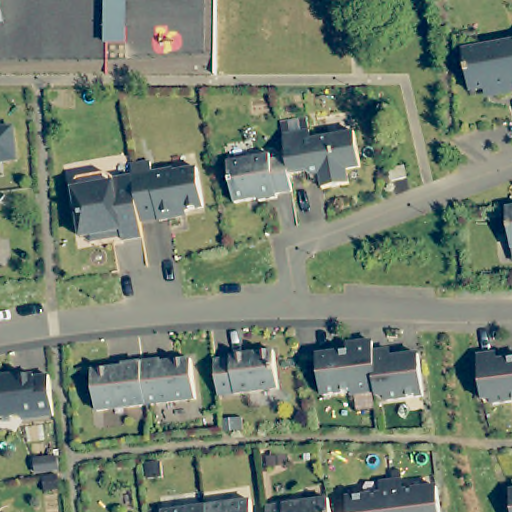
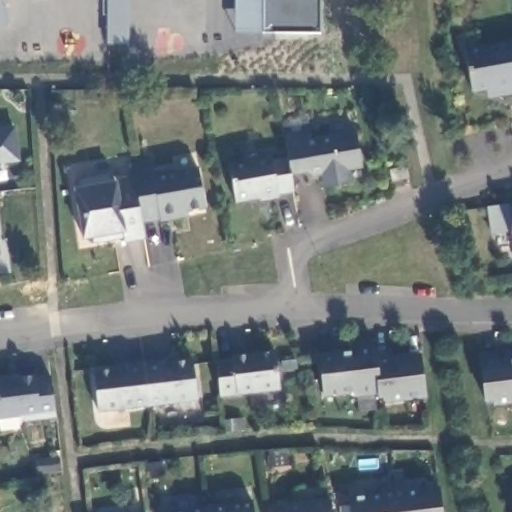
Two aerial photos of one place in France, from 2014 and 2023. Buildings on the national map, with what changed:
unchanged [(105,45),(105,0),(128,0),(127,45),(105,45)]
new [(234,32),(234,0),(319,0),(318,33),(234,32)]
unchanged [(0,25),(0,2),(5,24),(0,25)]
new [(17,31),(16,61),(0,61),(0,30),(17,31)]
unchanged [(495,86),(471,90),(463,49),(512,40),(512,91),(496,94),(495,86)]
unchanged [(19,124),(24,162),(0,161),(0,125),(19,124)]
unchanged [(314,131),(315,140),(359,132),(365,167),(351,170),(354,185),(328,190),(325,175),(316,176),(310,172),(294,175),(294,172),(292,161),(291,157),(289,145),(287,135),(314,131)]
unchanged [(275,155),(275,160),(291,157),(292,161),(294,172),(294,175),(297,192),(282,195),(282,199),(264,202),(264,199),(239,204),(232,162),(275,155)]
unchanged [(131,163),(150,160),(152,172),(174,167),(174,170),(198,166),(205,206),(187,209),(188,214),(160,219),(159,216),(141,219),(139,207),(138,203),(134,175),(133,175),(131,163)]
unchanged [(408,177),(391,181),(388,170),(406,166),(408,177)]
unchanged [(124,239),(122,229),(106,232),(102,237),(92,239),(86,235),(83,235),(74,182),(79,175),(107,170),(114,175),(115,177),(133,175),(134,175),(138,203),(139,207),(141,219),(143,230),(144,235),(124,239)]
unchanged [(512,209),(512,241),(508,209),(512,209)]
unchanged [(3,252),(0,252),(0,223),(3,252)]
unchanged [(353,347),(352,341),(377,337),(378,348),(382,388),(358,392),(357,388),(327,392),(323,351),(353,347)]
unchanged [(378,348),(394,346),(395,353),(423,351),(428,392),(391,397),(391,392),(382,393),(382,388),(378,348)]
unchanged [(283,385),(224,392),(220,357),(237,355),(237,352),(278,347),(283,385)]
unchanged [(501,360),(512,358),(512,401),(498,402),(498,397),(489,400),(483,354),(500,352),(501,360)]
unchanged [(147,358),(166,356),(166,358),(197,355),(202,396),(152,401),(147,358)]
unchanged [(152,401),(102,407),(98,367),(129,363),(128,361),(147,358),(152,401)]
unchanged [(34,377),(34,379),(49,377),(54,417),(23,421),(17,417),(0,419),(0,381),(34,377)]
unchanged [(404,491),(436,487),(440,512),(351,512),(349,497),(382,493),(381,482),(402,480),(404,491)]
unchanged [(512,490),(512,508),(510,490),(512,490)]
unchanged [(330,495),(334,512),(269,512),(267,503),(330,495)]
unchanged [(251,501),(253,512),(207,512),(206,507),(251,501)]
unchanged [(207,512),(163,512),(206,507),(207,512)]

